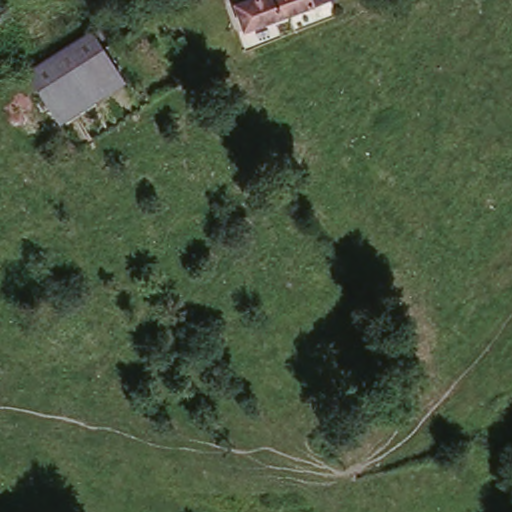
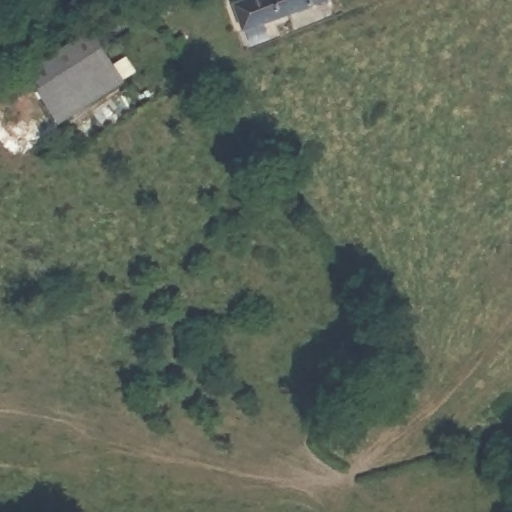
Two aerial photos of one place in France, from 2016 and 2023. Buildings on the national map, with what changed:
unchanged [(236,10),(265,0),(329,0),(310,6),(294,14),(244,31),(236,10)]
unchanged [(96,40),(39,94),(26,82),(64,46),(83,28),(86,31),(96,40)]
unchanged [(123,69),(67,124),(39,94),(96,40),(123,69)]

